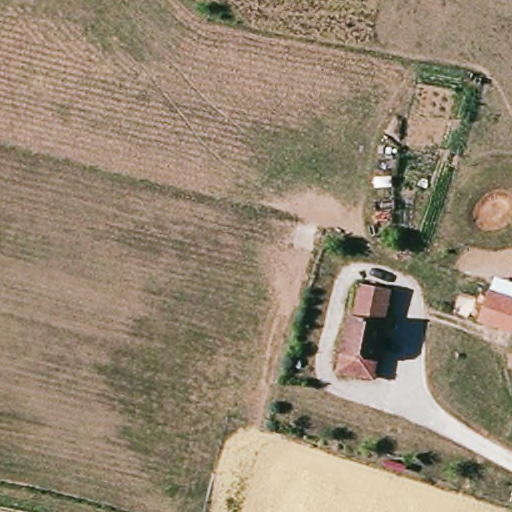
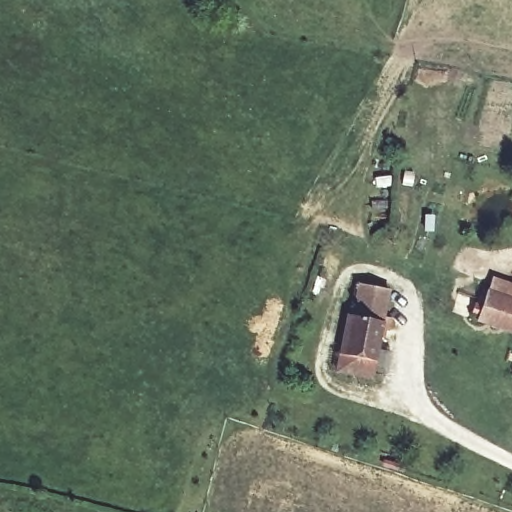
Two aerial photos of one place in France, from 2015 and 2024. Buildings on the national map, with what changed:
unchanged [(347,311),(353,311),(358,279),(390,285),(373,376),(337,366),(347,311)]
unchanged [(512,298),(512,330),(478,320),(487,290),(512,298)]

